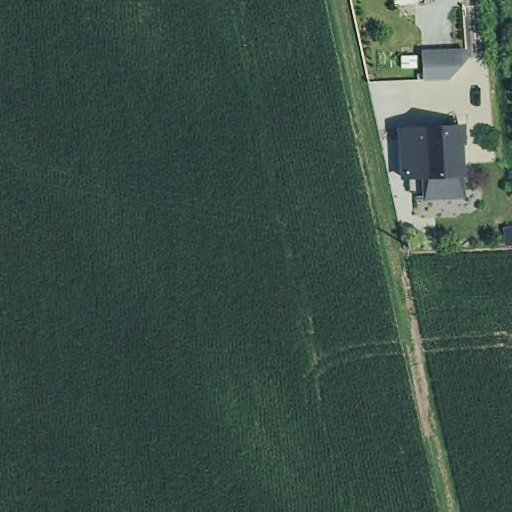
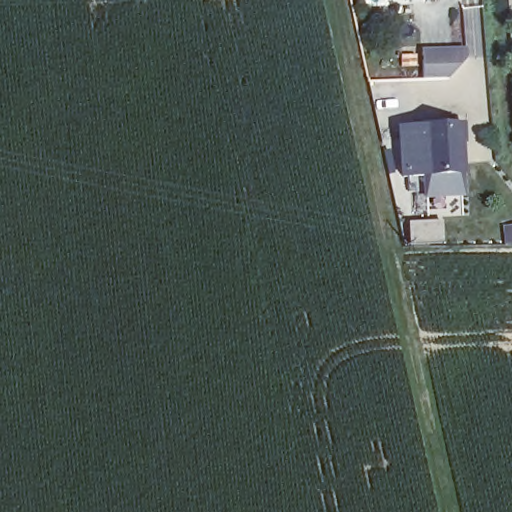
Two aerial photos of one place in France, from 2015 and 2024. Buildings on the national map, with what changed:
unchanged [(468,60),(454,80),(424,81),(422,51),(467,49),(468,60)]
unchanged [(423,128),(462,125),(465,175),(467,195),(427,198),(427,178),(423,128)]

